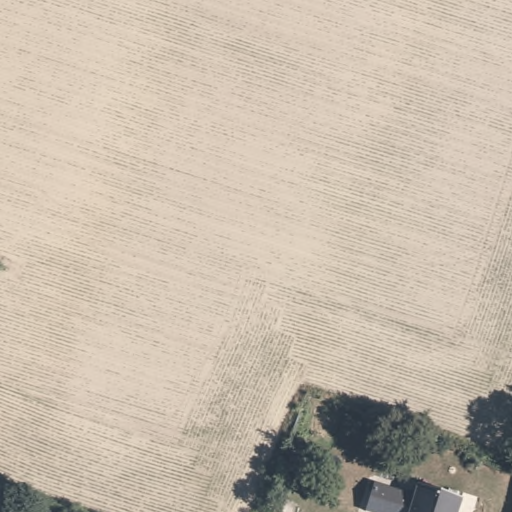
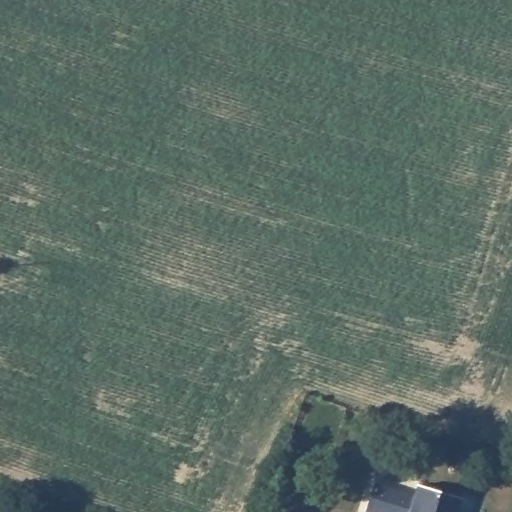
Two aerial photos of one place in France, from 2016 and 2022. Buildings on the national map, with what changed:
unchanged [(463,494),(457,512),(409,512),(420,479),(463,494)]

